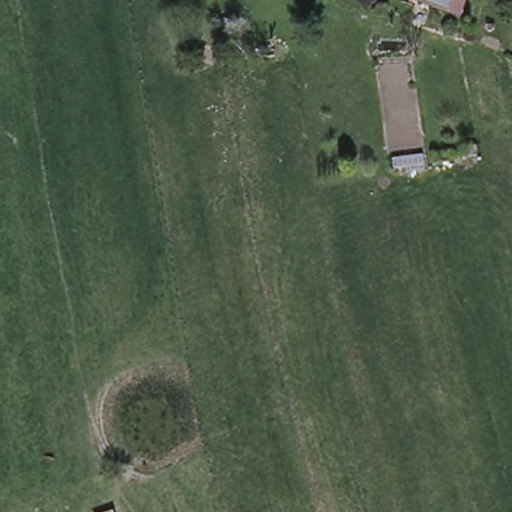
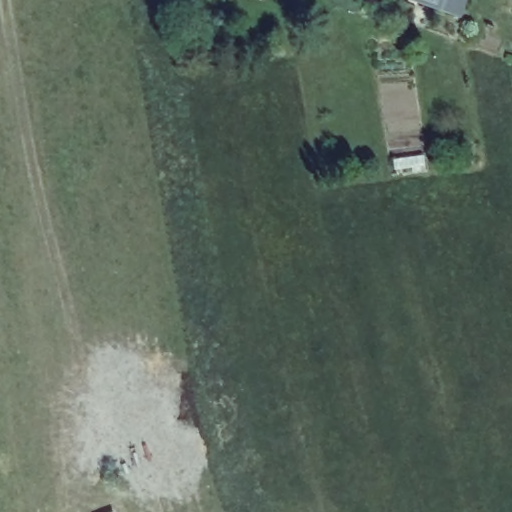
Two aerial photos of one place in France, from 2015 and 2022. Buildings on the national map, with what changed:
unchanged [(103,512),(113,509),(114,512),(103,512)]

